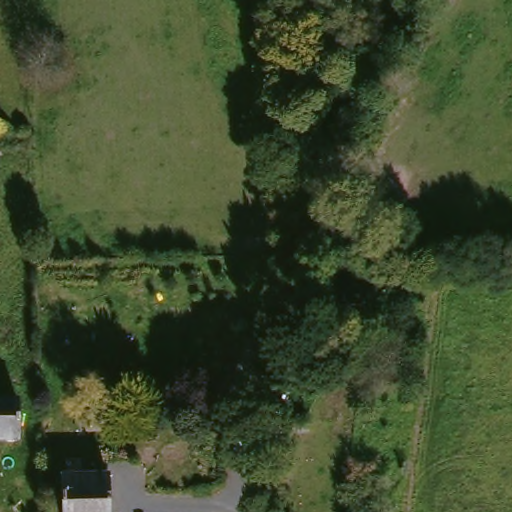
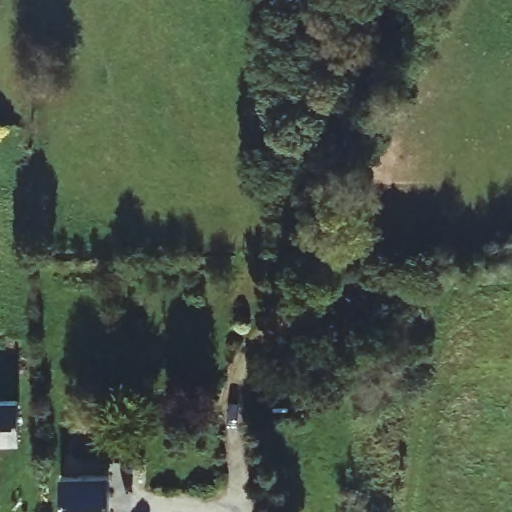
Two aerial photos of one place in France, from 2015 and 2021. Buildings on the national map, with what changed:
unchanged [(16,444),(0,444),(0,406),(17,406),(16,444)]
unchanged [(103,486),(103,512),(52,512),(52,487),(103,486)]

